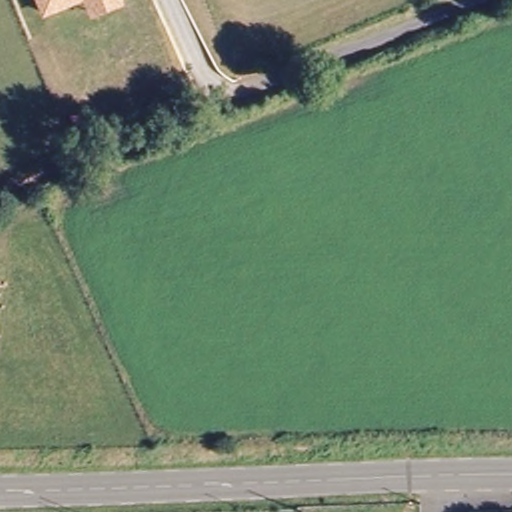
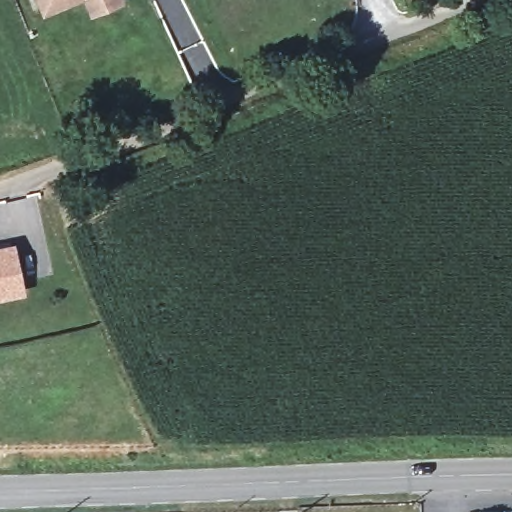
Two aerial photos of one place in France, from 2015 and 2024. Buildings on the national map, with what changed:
unchanged [(36,0),(81,0),(42,16),(36,0)]
unchanged [(91,17),(84,0),(125,0),(126,2),(91,17)]
new [(15,241),(26,294),(0,299),(0,244),(15,241)]

